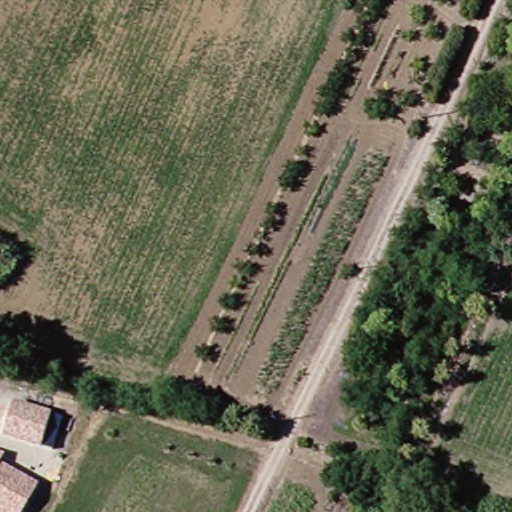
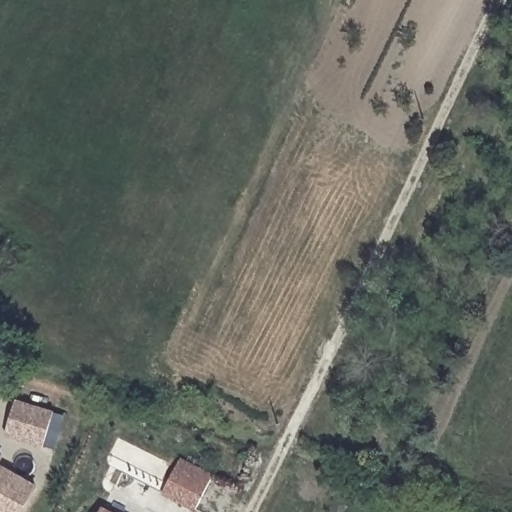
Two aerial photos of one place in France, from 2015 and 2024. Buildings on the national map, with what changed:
unchanged [(50,445),(41,442),(2,431),(12,397),(50,408),(60,411),(50,445)]
new [(213,474),(194,511),(161,495),(179,460),(213,474)]
unchanged [(33,487),(19,512),(0,512),(0,468),(33,487)]
new [(111,512),(100,512),(102,508),(111,512)]

